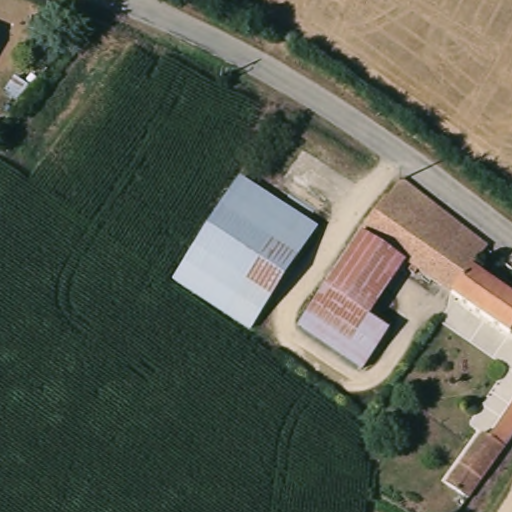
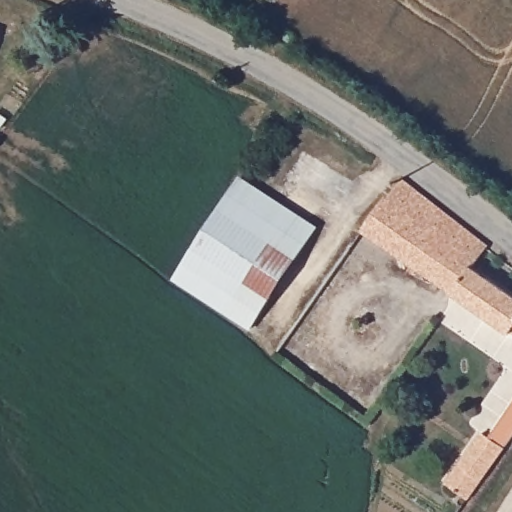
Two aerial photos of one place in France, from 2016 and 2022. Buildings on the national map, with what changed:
unchanged [(240,174),(320,227),(251,334),(170,281),(240,174)]
unchanged [(479,263),(392,203),(405,187),(410,179),(492,245),(479,263)]
unchanged [(512,290),(512,333),(367,232),(389,202),(392,203),(479,263),(477,266),(512,290)]
demolished [(363,233),(406,266),(378,322),(391,329),(363,376),(296,332),(363,233)]
unchanged [(459,491),(456,489),(460,482),(463,477),(452,467),(475,440),(490,419),(497,424),(512,403),(512,433),(471,488),(483,499),(480,506),(467,497),(466,497),(459,491)]

